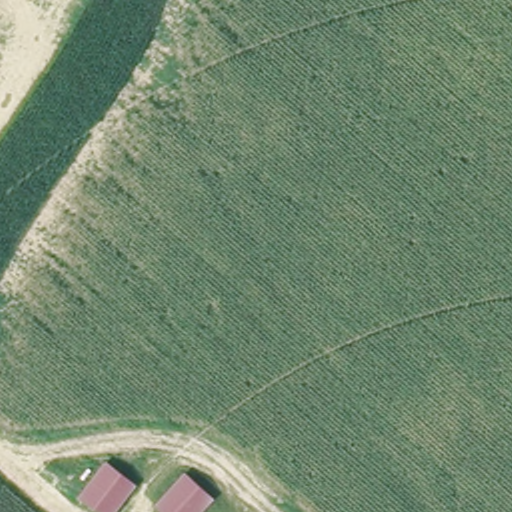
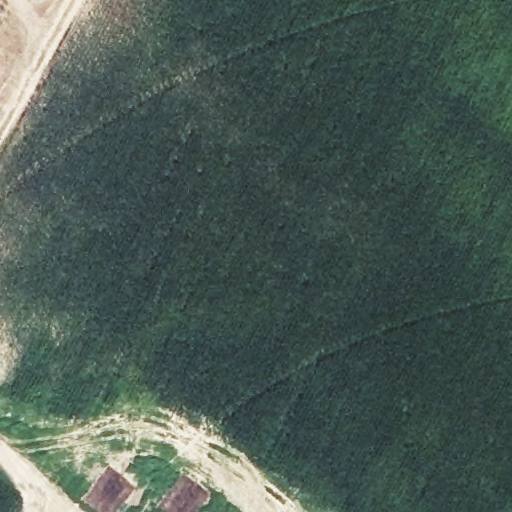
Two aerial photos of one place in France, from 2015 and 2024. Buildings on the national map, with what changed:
[]

